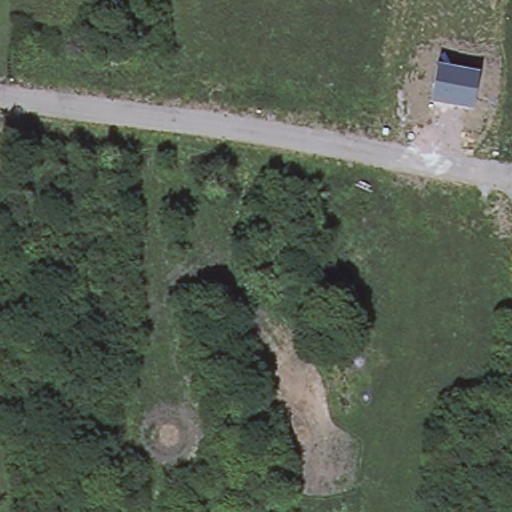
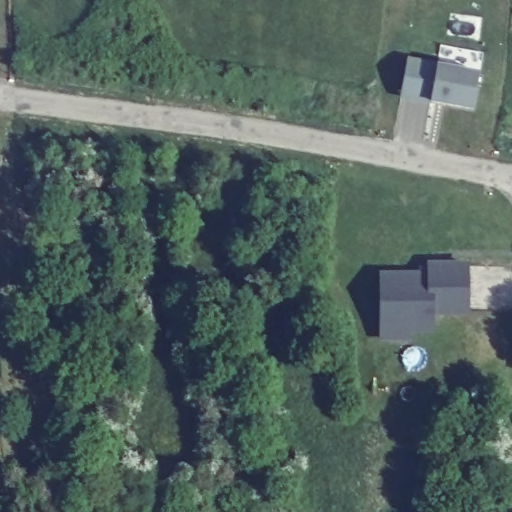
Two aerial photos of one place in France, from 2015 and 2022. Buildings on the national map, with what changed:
new [(407,60),(479,73),(472,109),(400,96),(407,60)]
new [(382,276),(430,276),(430,266),(465,266),(465,313),(430,313),(430,330),(407,330),(407,339),(382,339),(382,276)]

